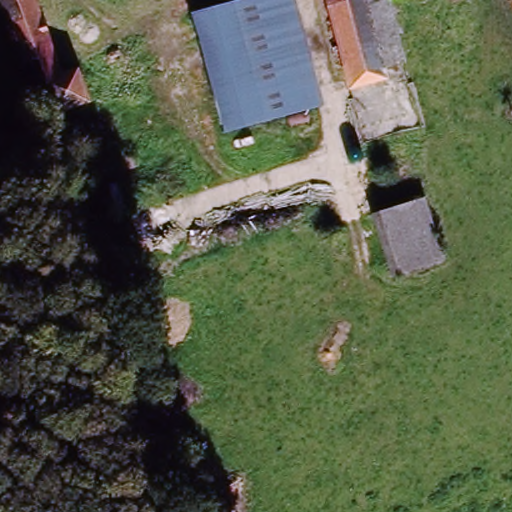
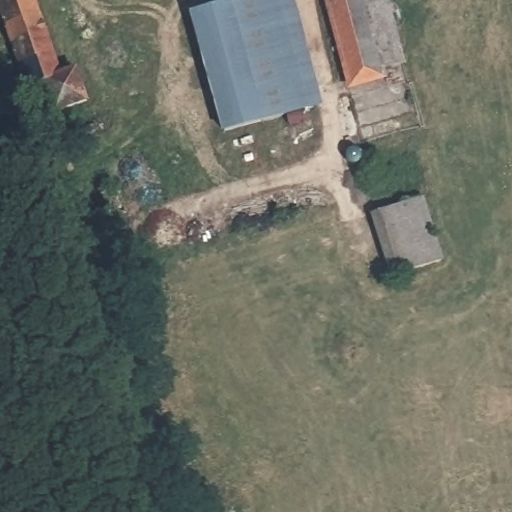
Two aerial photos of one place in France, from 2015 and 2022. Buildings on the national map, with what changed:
unchanged [(84,90),(53,102),(42,73),(27,78),(4,0),(33,0),(37,14),(47,13),(67,70),(75,66),(84,90)]
unchanged [(324,110),(272,124),(222,138),(202,141),(192,81),(207,81),(190,18),(263,0),(293,0),(324,110)]
unchanged [(350,81),(326,0),(358,0),(362,16),(377,73),(350,81)]
unchanged [(391,69),(377,73),(362,16),(358,0),(373,0),(376,11),(391,69)]
unchanged [(125,217),(107,221),(100,188),(116,184),(125,217)]
unchanged [(392,282),(372,220),(425,204),(445,263),(392,282)]
unchanged [(215,512),(210,495),(230,488),(240,508),(231,512),(215,512)]

